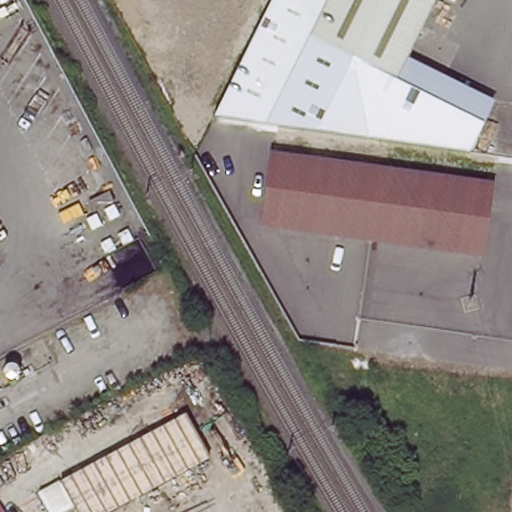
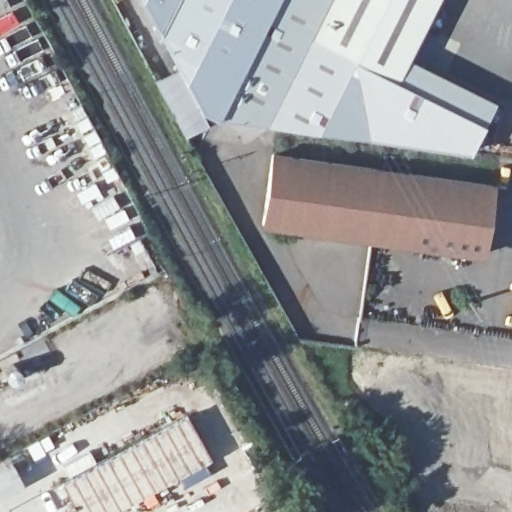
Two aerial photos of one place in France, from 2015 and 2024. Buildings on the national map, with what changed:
new [(199,109),(141,0),(270,0),(212,116),(199,109)]
unchanged [(357,59),(395,79),(407,56),(494,100),(471,151),(212,116),(270,0),(329,0),(311,35),(357,59)]
unchanged [(311,35),(329,0),(436,0),(395,79),(311,35)]
unchanged [(258,225),(270,148),(493,180),(481,257),(258,225)]
unchanged [(219,456),(114,512),(86,512),(81,503),(64,512),(60,512),(50,492),(69,482),(195,413),(219,456)]

